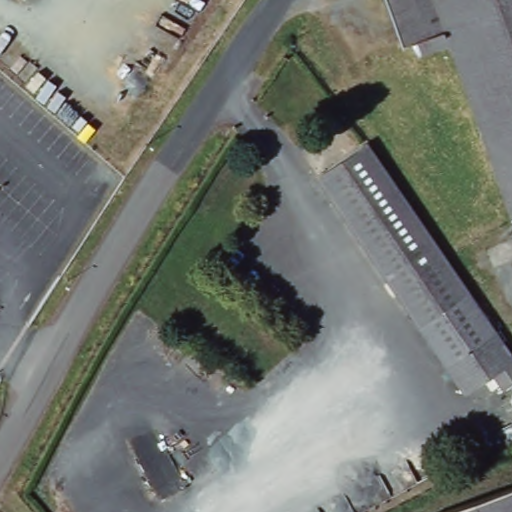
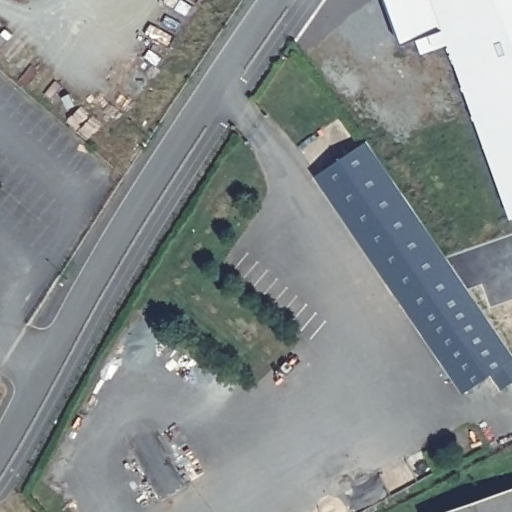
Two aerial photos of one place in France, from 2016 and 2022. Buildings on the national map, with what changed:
unchanged [(420,48),(416,35),(401,40),(388,0),(512,0),(512,207),(453,43),(438,49),(436,43),(420,48)]
unchanged [(512,345),(512,367),(479,388),(328,175),(373,144),(512,345)]
unchanged [(512,512),(440,512),(512,486),(512,512)]

